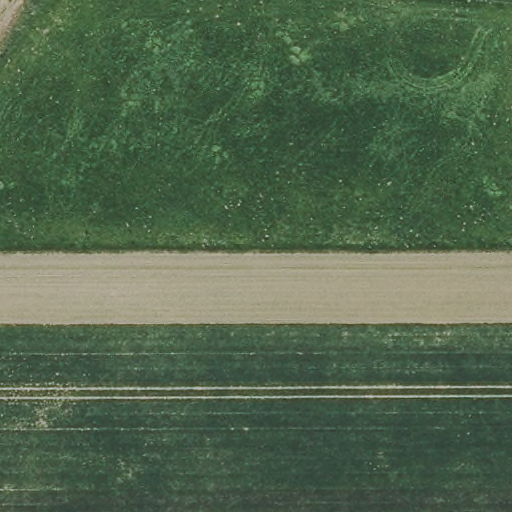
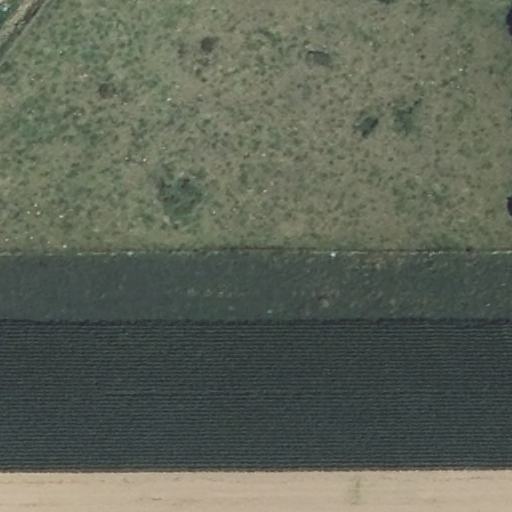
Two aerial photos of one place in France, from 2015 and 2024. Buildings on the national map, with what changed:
[]

